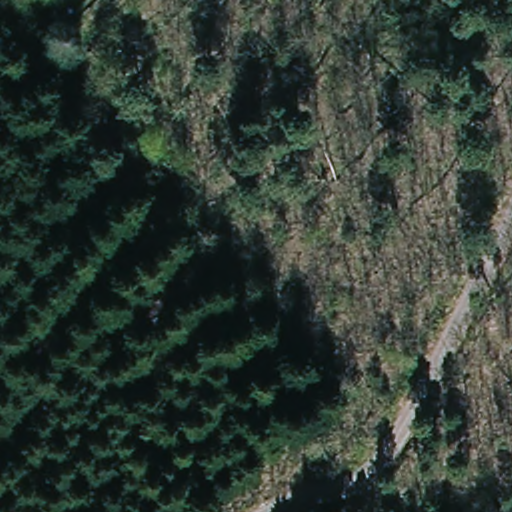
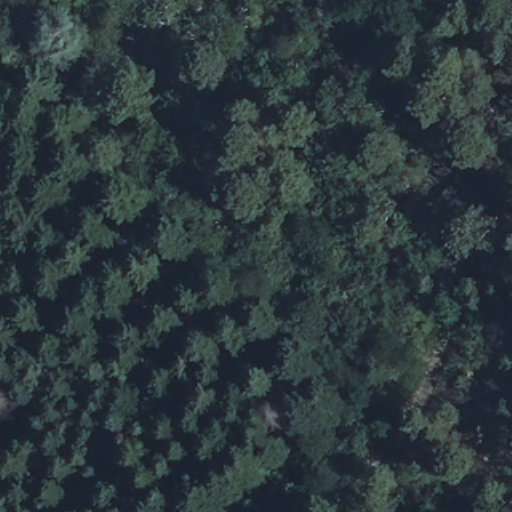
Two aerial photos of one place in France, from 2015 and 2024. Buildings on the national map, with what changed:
[]

